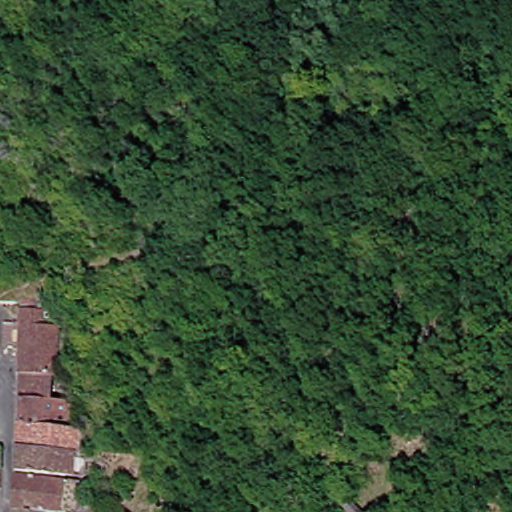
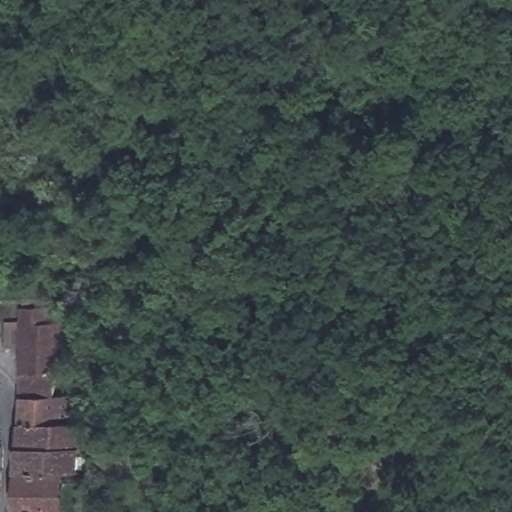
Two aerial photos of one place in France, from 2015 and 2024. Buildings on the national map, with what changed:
unchanged [(477,48),(479,61),(459,63),(459,51),(477,48)]
unchanged [(24,423),(25,398),(25,395),(25,374),(25,344),(25,308),(48,307),(49,323),(63,323),(63,373),(56,373),(56,397),(59,397),(58,410),(74,411),(69,425),(83,426),(85,450),(58,449),(23,448),(24,423)]
unchanged [(6,472),(0,471),(0,447),(6,447),(5,461),(8,462),(6,472)]
unchanged [(70,471),(21,471),(23,448),(58,449),(58,453),(73,454),(72,471),(70,471)]
unchanged [(21,474),(69,476),(66,510),(51,510),(51,512),(19,512),(19,508),(21,474)]

